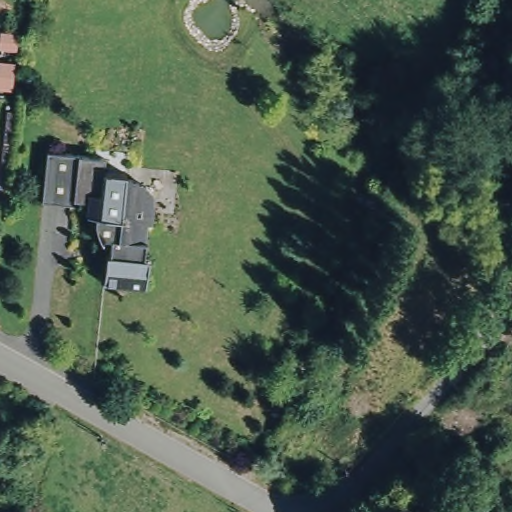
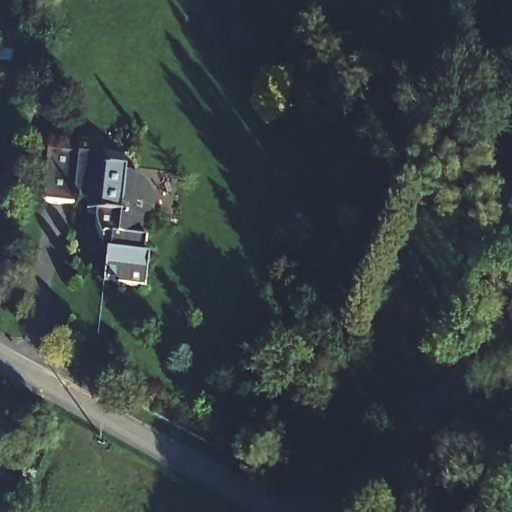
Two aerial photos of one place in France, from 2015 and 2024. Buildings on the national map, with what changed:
unchanged [(151,194),(154,209),(153,224),(146,224),(142,258),(149,259),(145,288),(103,283),(106,255),(110,255),(110,242),(100,241),(96,232),(95,227),(95,223),(96,217),(86,216),(87,202),(74,201),(73,206),(41,202),(47,152),(105,159),(105,171),(126,174),(125,180),(132,181),(146,187),(151,194)]

